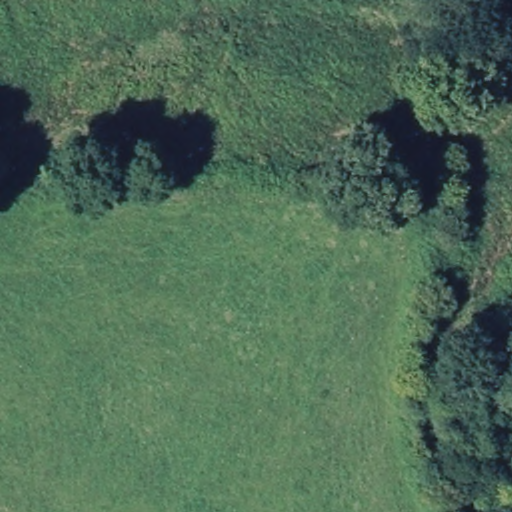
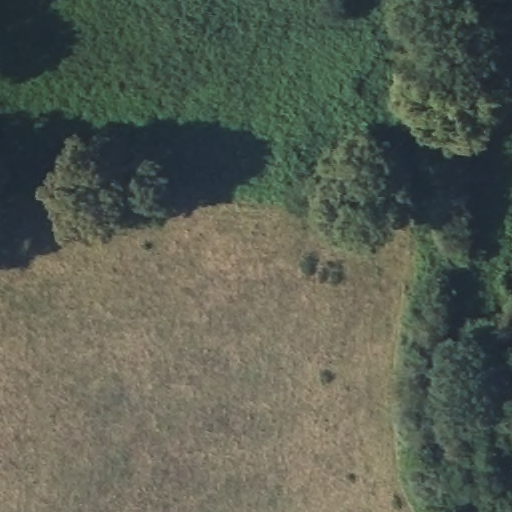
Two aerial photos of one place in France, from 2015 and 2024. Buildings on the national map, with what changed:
[]

